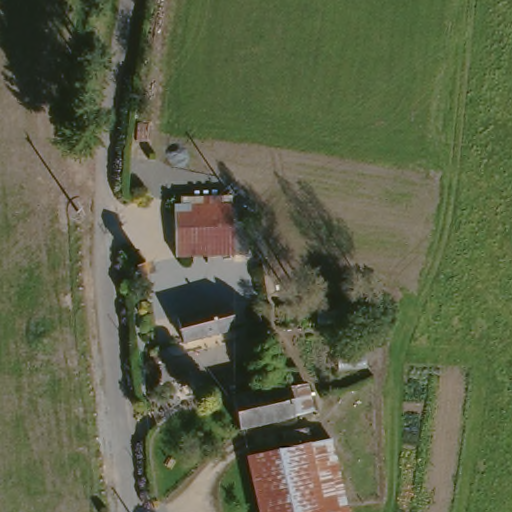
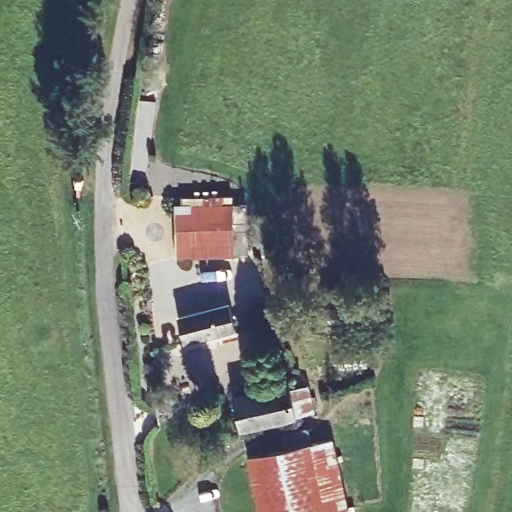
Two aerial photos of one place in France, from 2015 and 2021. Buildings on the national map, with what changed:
unchanged [(174,204),(204,202),(205,194),(231,193),(233,202),(245,202),(247,252),(177,257),(174,204)]
unchanged [(231,323),(183,335),(177,310),(226,299),(231,323)]
unchanged [(234,398),(287,383),(288,387),(307,382),(314,409),(294,414),(241,428),(234,398)]
unchanged [(248,454),(333,435),(351,512),(261,512),(248,454)]

